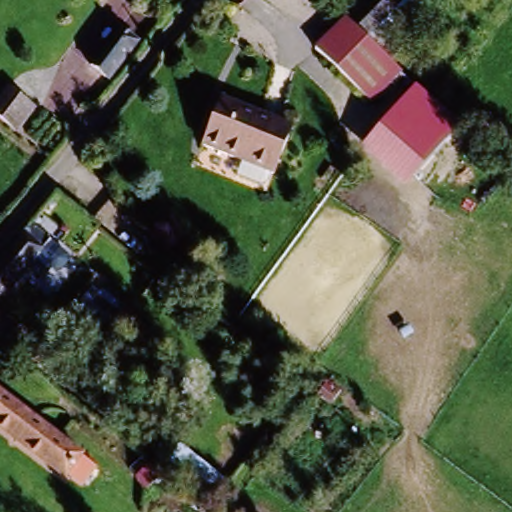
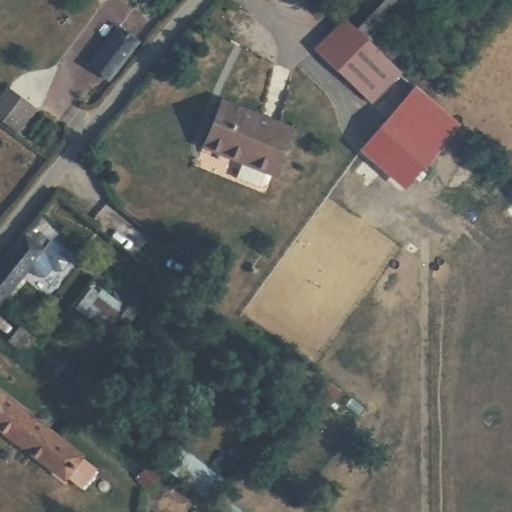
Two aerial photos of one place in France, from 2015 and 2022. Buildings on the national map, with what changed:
unchanged [(399,34),(409,44),(391,64),(401,75),(369,108),(314,51),(343,20),(354,30),(383,0),(431,0),(399,34)]
unchanged [(106,81),(85,65),(118,22),(139,40),(106,81)]
unchanged [(461,129),(404,192),(358,152),(414,87),(461,129)]
unchanged [(8,91),(33,110),(15,135),(0,125),(0,104),(8,91)]
unchanged [(218,96),(291,122),(274,170),(271,169),(266,183),(236,172),(241,158),(203,144),(218,96)]
unchanged [(13,245),(23,234),(26,236),(33,227),(41,234),(33,245),(40,250),(0,301),(0,262),(13,245)]
unchanged [(100,296),(104,290),(138,320),(113,347),(71,310),(88,287),(100,296)]
unchanged [(18,327),(36,341),(27,355),(8,340),(18,327)]
unchanged [(78,455),(60,477),(0,430),(0,395),(78,455)]

